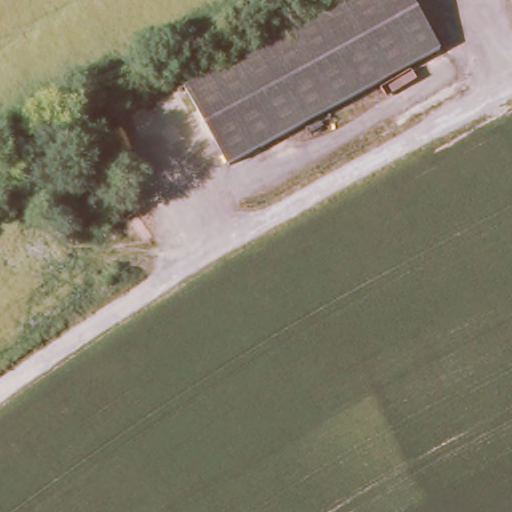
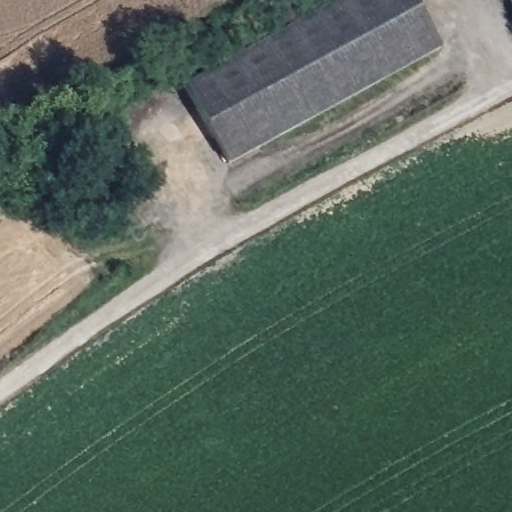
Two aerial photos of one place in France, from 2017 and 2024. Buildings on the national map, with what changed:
unchanged [(227,163),(185,82),(332,0),(416,0),(441,48),(227,163)]

